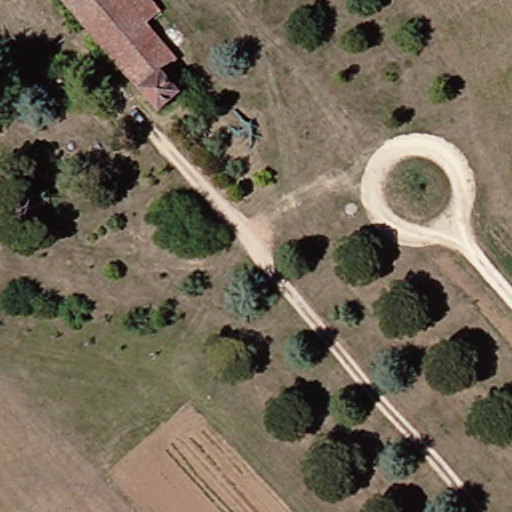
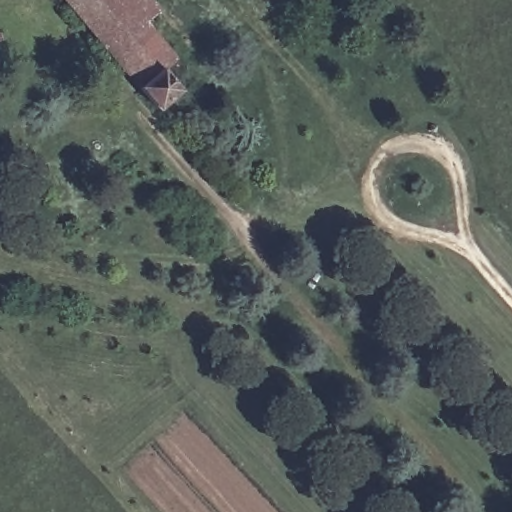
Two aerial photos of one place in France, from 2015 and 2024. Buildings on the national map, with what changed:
unchanged [(166,67),(185,90),(164,108),(74,0),(158,0),(166,9),(153,20),(181,54),(166,67)]

